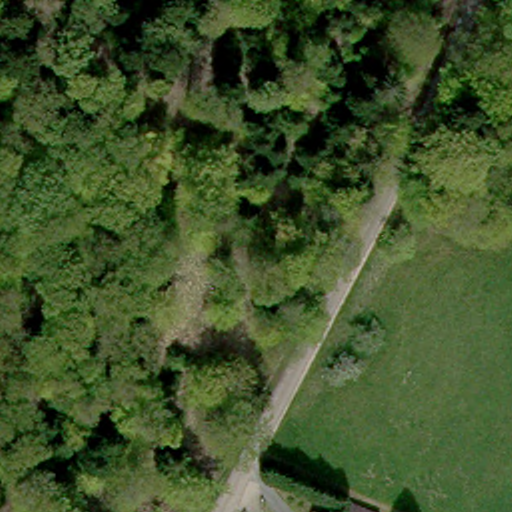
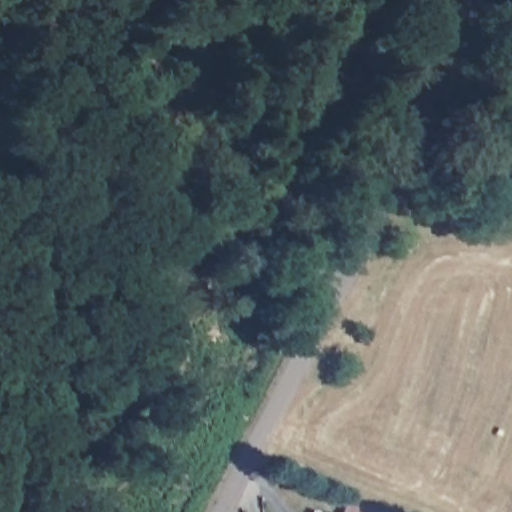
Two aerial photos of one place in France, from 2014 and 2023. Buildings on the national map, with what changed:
unchanged [(334,496),(376,512),(328,512),(334,496)]

